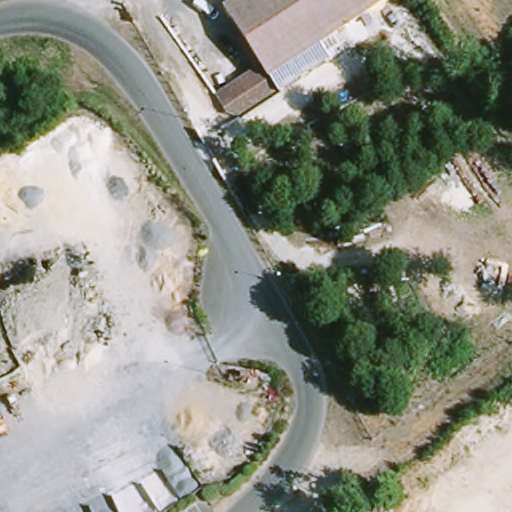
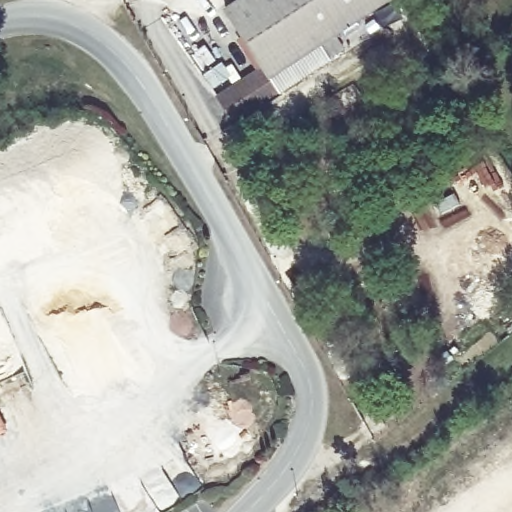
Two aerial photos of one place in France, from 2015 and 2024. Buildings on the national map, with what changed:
unchanged [(244,0),(395,0),(272,79),(228,10),(244,0)]

